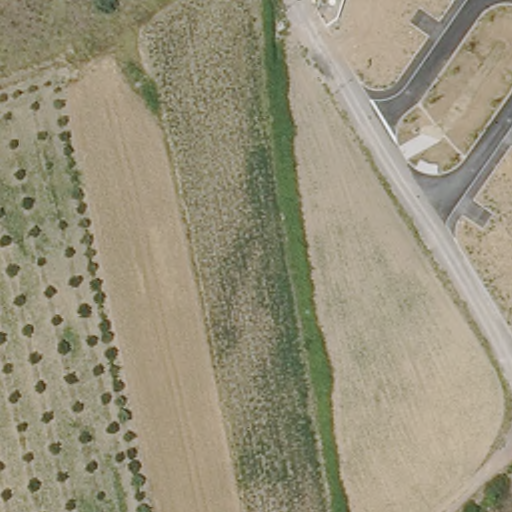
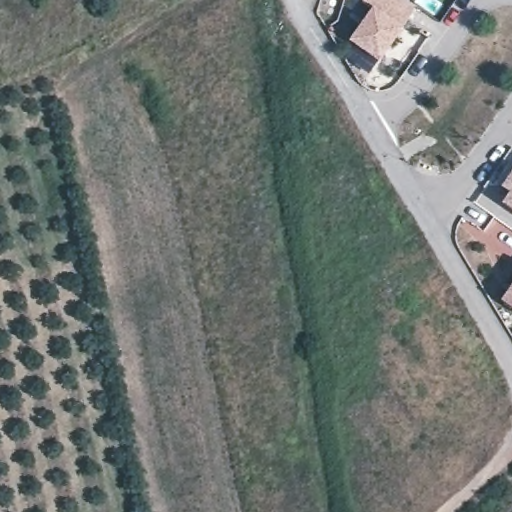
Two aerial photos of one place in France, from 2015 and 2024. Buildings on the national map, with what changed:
new [(363,0),(407,0),(417,7),(380,60),(350,40),(373,7),(363,0)]
new [(512,175),(512,190),(505,185),(512,175)]
new [(506,201),(512,192),(512,205),(506,201)]
unchanged [(512,283),(512,307),(500,299),(512,283)]

